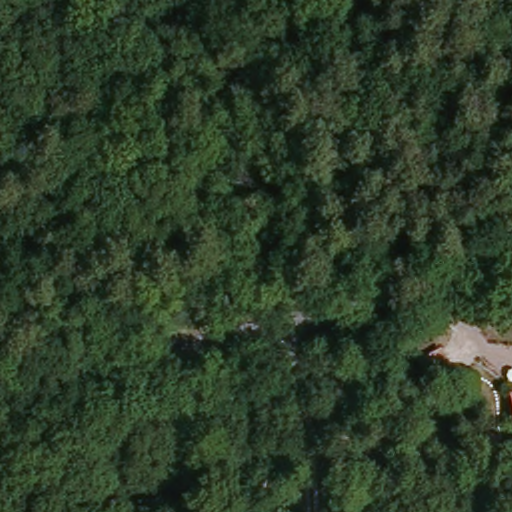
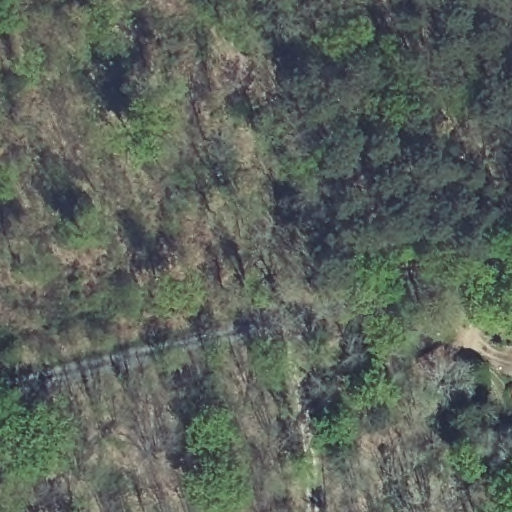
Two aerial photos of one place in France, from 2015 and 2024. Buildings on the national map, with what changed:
unchanged [(509,397),(512,396),(512,407),(509,397)]

